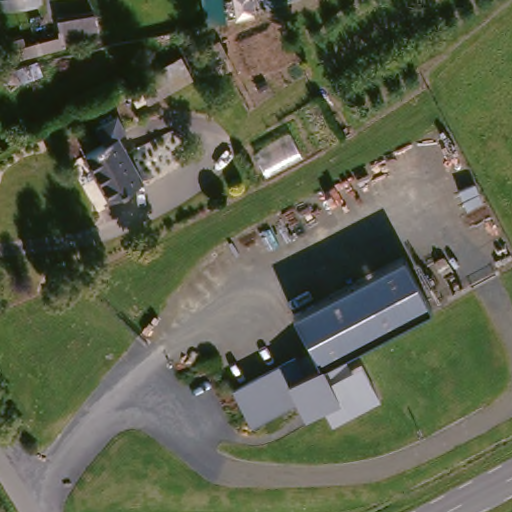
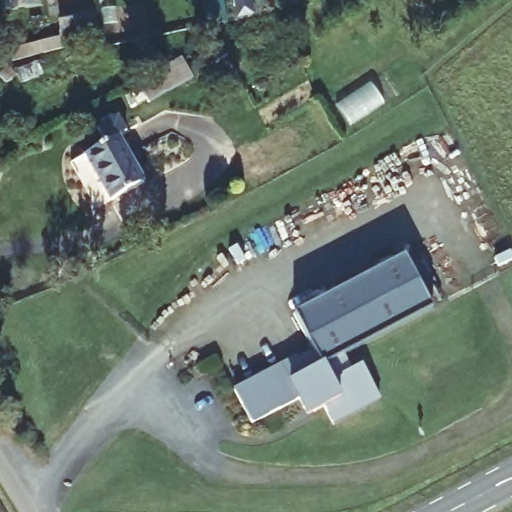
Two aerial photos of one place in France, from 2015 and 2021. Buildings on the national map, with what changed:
unchanged [(64,16),(98,5),(106,26),(72,39),(74,45),(52,53),(48,40),(69,32),(64,16)]
unchanged [(123,58),(166,30),(178,50),(134,77),(123,58)]
unchanged [(83,155),(103,142),(93,127),(113,114),(122,129),(113,135),(143,179),(111,199),(83,155)]
unchanged [(404,254),(432,307),(344,355),(351,370),(361,362),(381,399),(333,425),(324,409),(306,417),(298,403),(252,425),(233,387),(308,348),(296,314),(404,254)]

